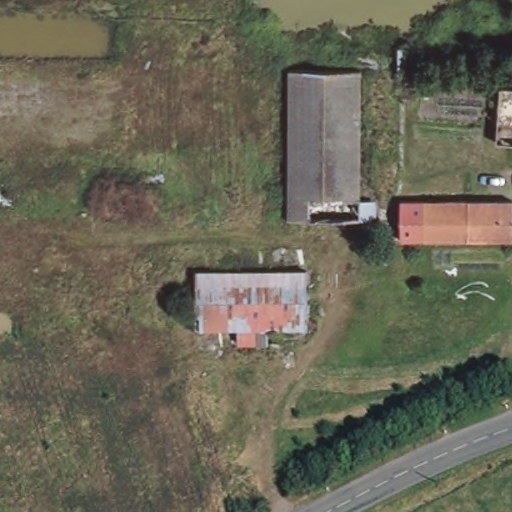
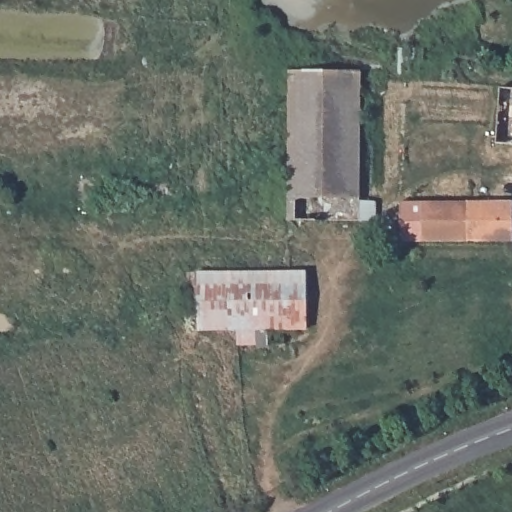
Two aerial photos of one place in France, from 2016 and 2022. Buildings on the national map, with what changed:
unchanged [(368,72),(365,220),(292,219),(295,70),(368,72)]
unchanged [(512,246),(405,242),(407,202),(512,207),(512,246)]
unchanged [(310,274),(308,327),(268,326),(268,341),(237,340),(237,327),(199,326),(200,270),(310,274)]

